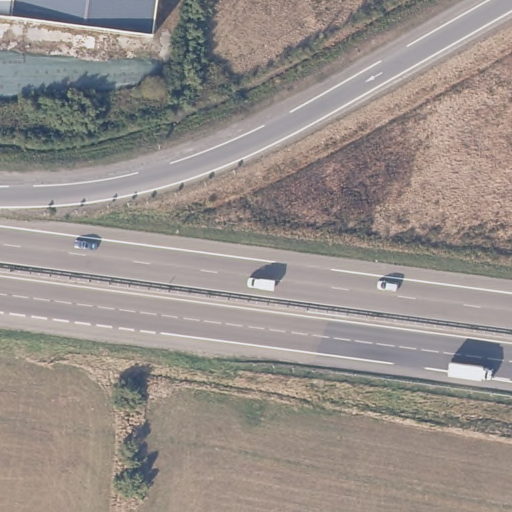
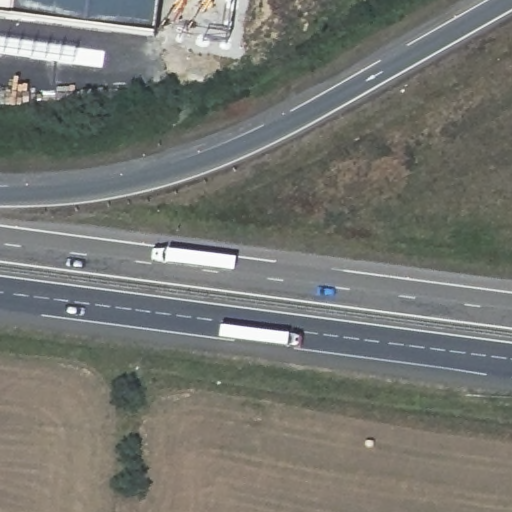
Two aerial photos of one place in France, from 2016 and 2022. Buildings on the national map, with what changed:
unchanged [(0,14),(0,0),(11,0),(9,15),(0,14)]
unchanged [(9,15),(11,0),(160,0),(156,34),(9,15)]

